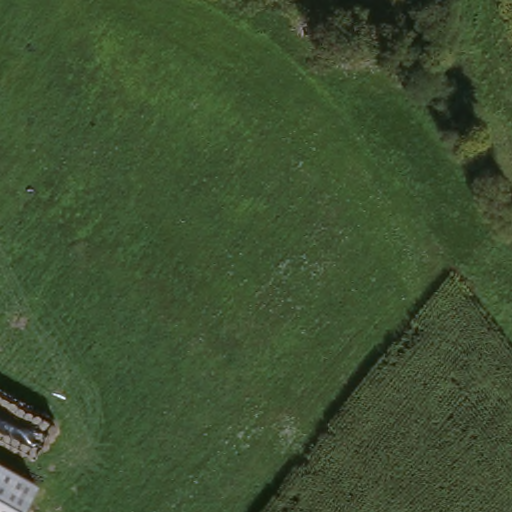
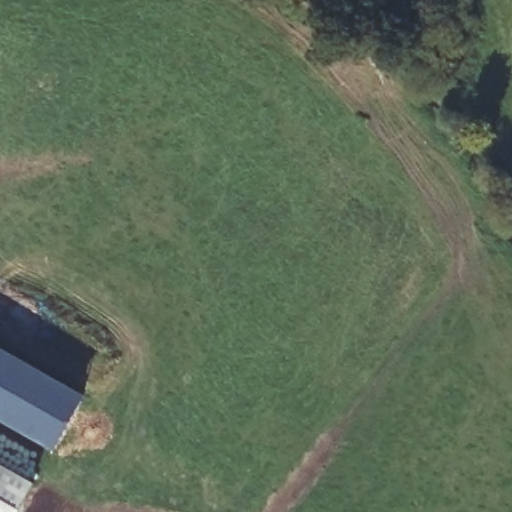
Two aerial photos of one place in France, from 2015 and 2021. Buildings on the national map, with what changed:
new [(55,450),(0,419),(0,346),(85,394),(55,450)]
unchanged [(18,512),(0,512),(0,463),(34,482),(18,512)]

